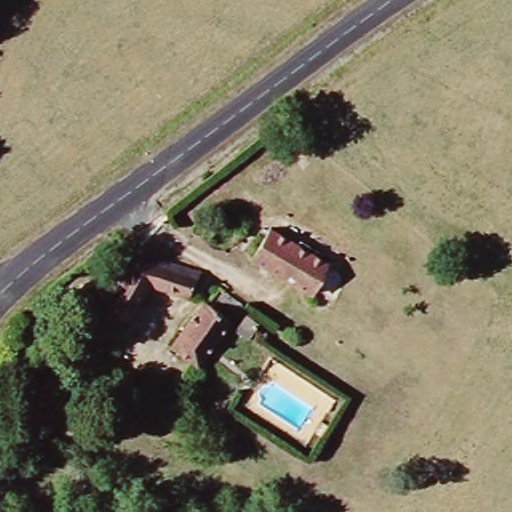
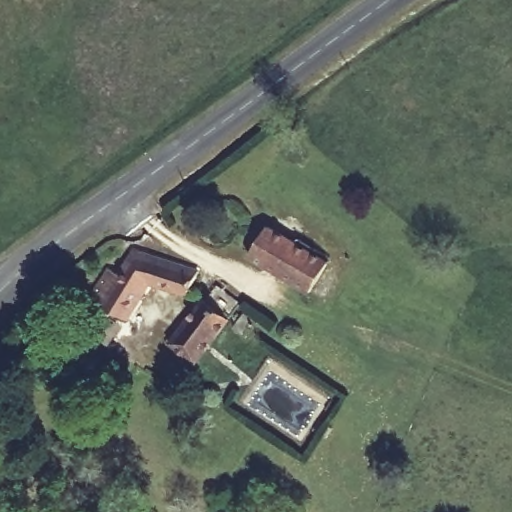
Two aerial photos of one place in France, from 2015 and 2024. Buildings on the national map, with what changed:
unchanged [(331,263),(311,295),(250,258),(268,225),(331,263)]
unchanged [(116,279),(131,249),(191,275),(181,303),(147,289),(131,325),(110,310),(96,301),(108,276),(116,279)]
unchanged [(214,289),(238,305),(236,311),(196,369),(168,352),(203,297),(208,300),(214,289)]

